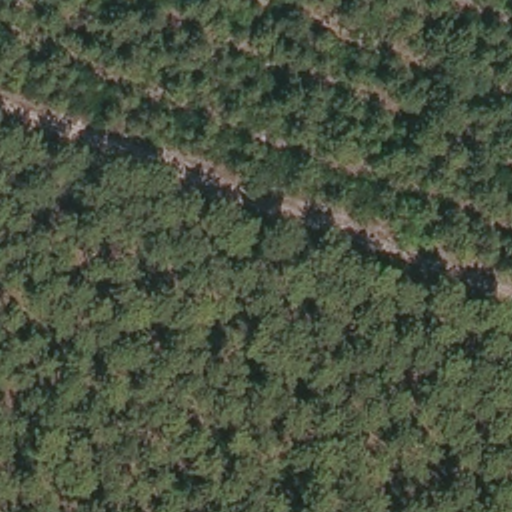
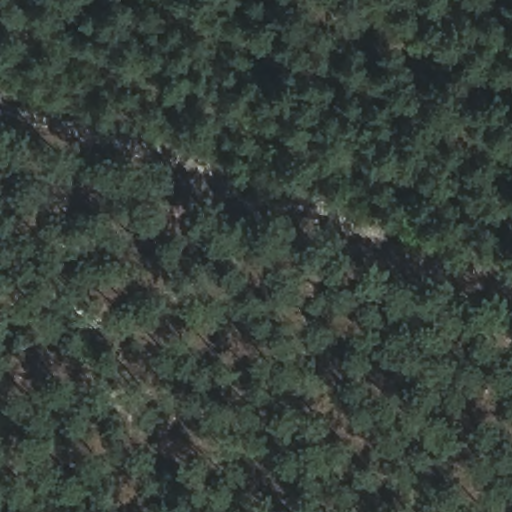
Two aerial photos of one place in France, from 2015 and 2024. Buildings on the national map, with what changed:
[]

